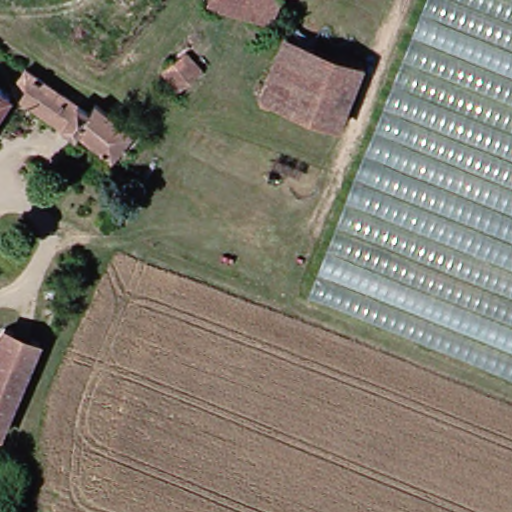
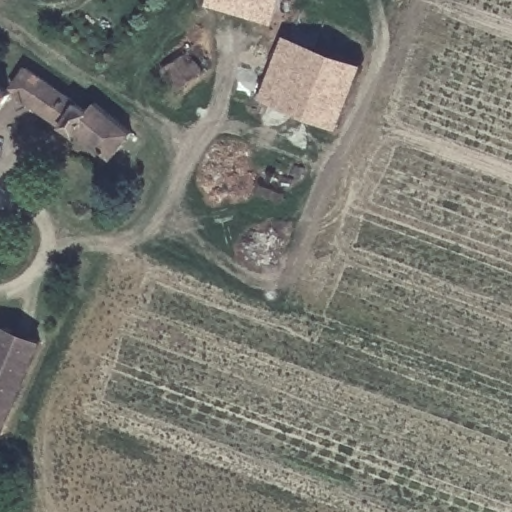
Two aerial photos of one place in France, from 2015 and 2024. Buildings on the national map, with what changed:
demolished [(129,9),(135,0),(172,0),(156,25),(129,9)]
unchanged [(215,0),(284,0),(275,22),(215,0)]
demolished [(310,292),(427,0),(512,0),(512,374),(310,292)]
demolished [(55,36),(52,31),(79,17),(91,11),(100,29),(134,20),(147,42),(152,57),(110,77),(96,67),(74,74),(55,36)]
unchanged [(202,60),(181,80),(161,59),(181,39),(202,60)]
unchanged [(267,102),(289,41),(365,67),(338,128),(267,102)]
unchanged [(20,84),(37,65),(96,112),(84,129),(80,135),(20,84)]
unchanged [(0,120),(0,80),(17,93),(0,120)]
unchanged [(96,112),(99,108),(136,135),(121,156),(84,129),(96,112)]
unchanged [(0,430),(0,359),(13,327),(48,341),(9,433),(0,430)]

